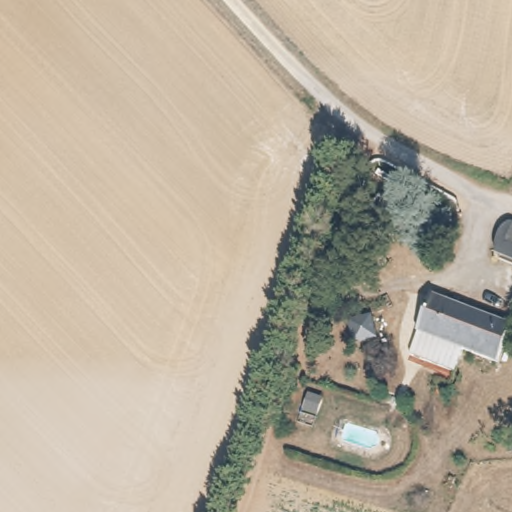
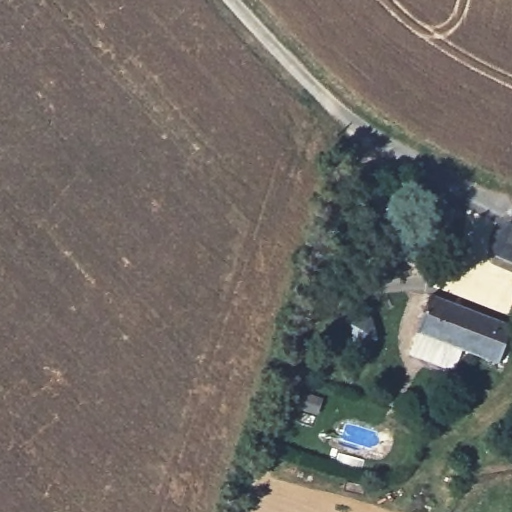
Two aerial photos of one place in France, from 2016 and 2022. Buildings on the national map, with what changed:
unchanged [(460,364),(414,347),(435,292),(512,321),(512,331),(503,359),(468,345),(460,364)]

